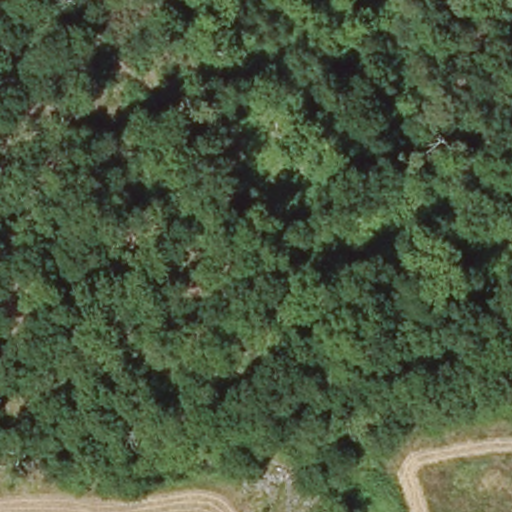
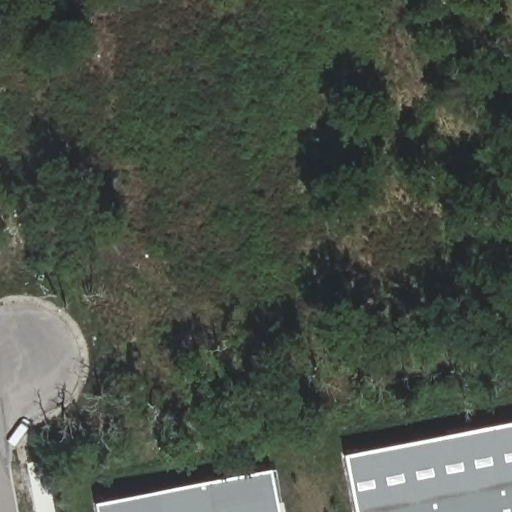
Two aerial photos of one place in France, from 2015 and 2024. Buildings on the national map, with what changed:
new [(356,512),(346,457),(512,424),(512,512),(356,512)]
new [(263,472),(271,512),(97,512),(96,505),(263,472)]

